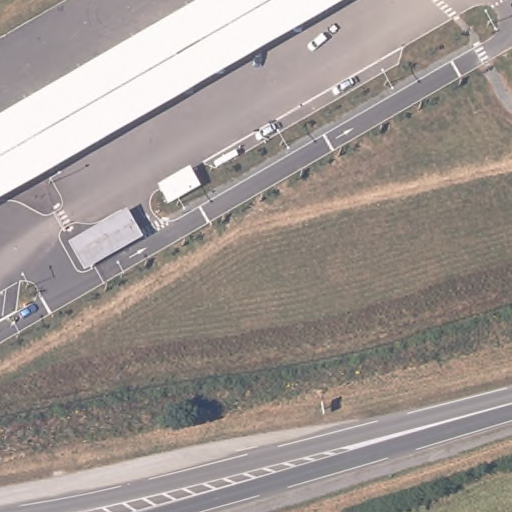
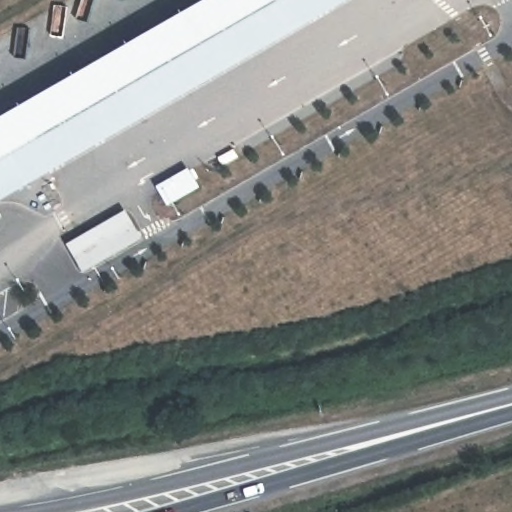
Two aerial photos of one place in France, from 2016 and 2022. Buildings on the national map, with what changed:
unchanged [(207,0),(352,0),(0,204),(0,119),(207,0)]

